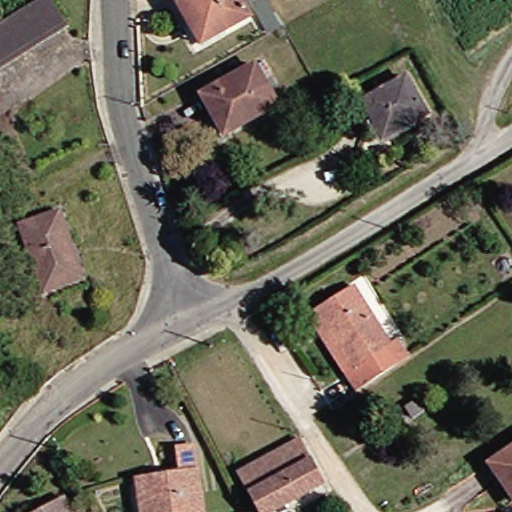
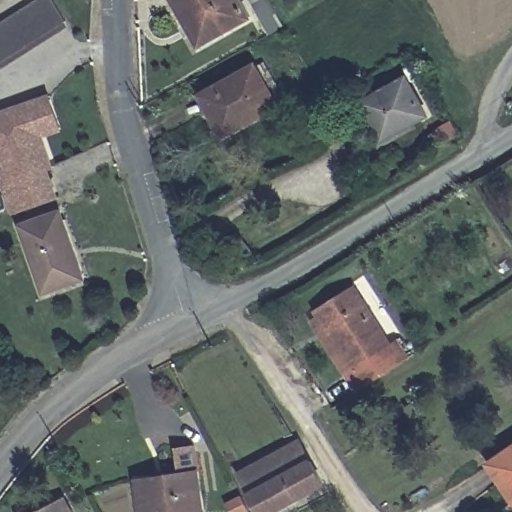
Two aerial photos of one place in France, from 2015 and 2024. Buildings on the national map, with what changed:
unchanged [(49,0),(64,26),(0,67),(0,28),(44,0),(49,0)]
unchanged [(176,0),(240,0),(250,18),(201,45),(176,0)]
unchanged [(254,0),(269,0),(284,26),(272,33),(254,0)]
unchanged [(211,112),(202,95),(254,65),(277,105),(231,132),(225,136),(211,112)]
unchanged [(406,78),(427,115),(383,139),(362,103),(406,78)]
new [(0,168),(0,114),(31,103),(51,96),(63,130),(43,136),(53,168),(5,184),(0,168)]
new [(46,170),(56,199),(15,212),(5,184),(46,170)]
unchanged [(87,280),(45,294),(23,228),(65,214),(77,252),(82,267),(87,280)]
unchanged [(407,361),(368,387),(355,368),(362,363),(350,346),(343,351),(321,317),(328,312),(324,306),(361,280),(400,338),(406,334),(419,353),(407,361)]
unchanged [(413,419),(406,409),(417,401),(424,412),(413,419)]
unchanged [(140,480),(184,473),(180,448),(198,444),(209,506),(210,512),(146,512),(140,480)]
unchanged [(242,474),(302,444),(324,485),(270,512),(261,512),(242,474)]
unchanged [(489,464),(512,449),(512,498),(489,464)]
unchanged [(68,496),(76,512),(37,512),(68,496)]

